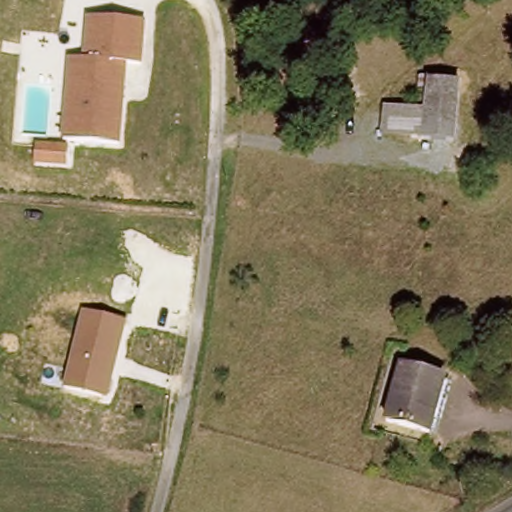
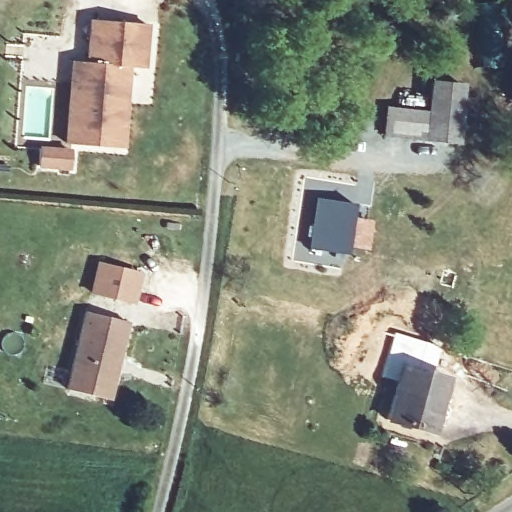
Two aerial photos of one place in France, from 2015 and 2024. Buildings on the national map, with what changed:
unchanged [(75,17),(146,21),(145,65),(128,65),(124,146),(68,142),(75,17)]
unchanged [(429,85),(461,90),(454,148),(422,144),(427,113),(429,85)]
unchanged [(382,139),(386,107),(427,113),(422,144),(382,139)]
new [(319,197),(354,202),(346,253),(309,247),(319,197)]
new [(89,293),(98,261),(141,272),(133,303),(89,293)]
unchanged [(85,312),(130,322),(111,400),(66,390),(85,312)]
unchanged [(404,371),(444,385),(427,434),(388,420),(404,371)]

